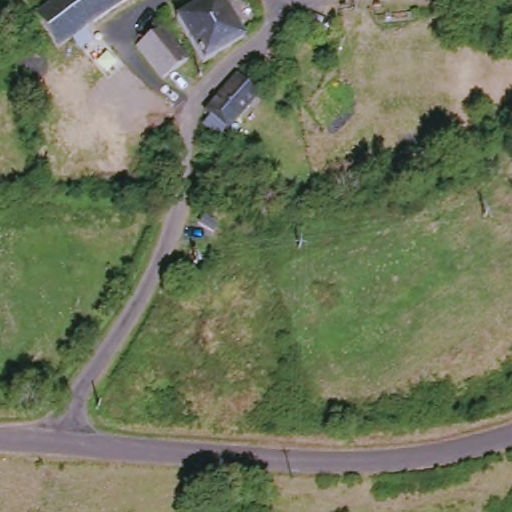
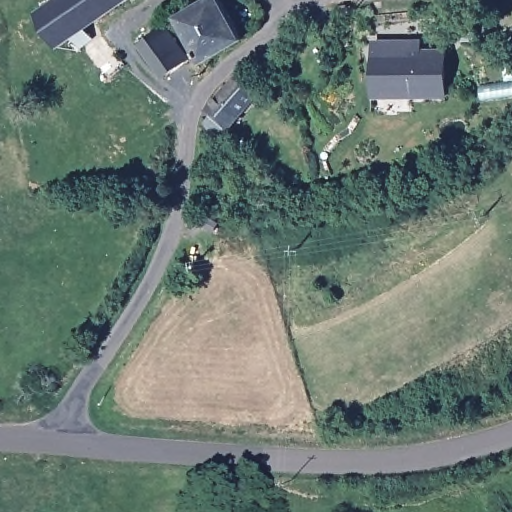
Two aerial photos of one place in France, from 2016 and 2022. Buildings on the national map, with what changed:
unchanged [(54,0),(130,0),(87,26),(95,39),(80,48),(73,36),(56,46),(35,11),(54,0)]
unchanged [(177,18),(209,0),(228,0),(248,34),(203,64),(177,18)]
unchanged [(183,62),(161,77),(141,47),(164,33),(183,62)]
new [(448,96),(373,98),(372,40),(422,40),(423,48),(448,49),(448,96)]
unchanged [(264,96),(224,135),(210,122),(218,114),(213,110),(246,78),(264,96)]

